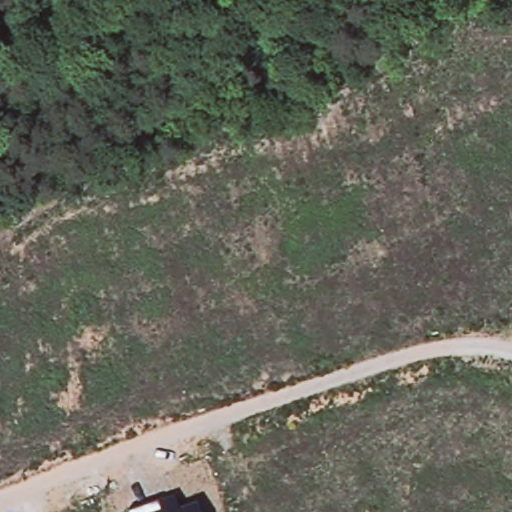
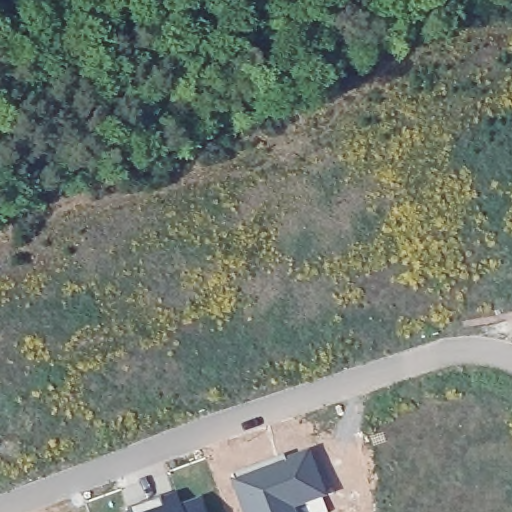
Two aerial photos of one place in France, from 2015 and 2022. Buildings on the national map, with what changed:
new [(327,496),(296,508),(297,512),(243,512),(232,481),(312,448),(327,496)]
unchanged [(175,495),(179,507),(198,501),(202,512),(128,512),(127,510),(175,495)]

